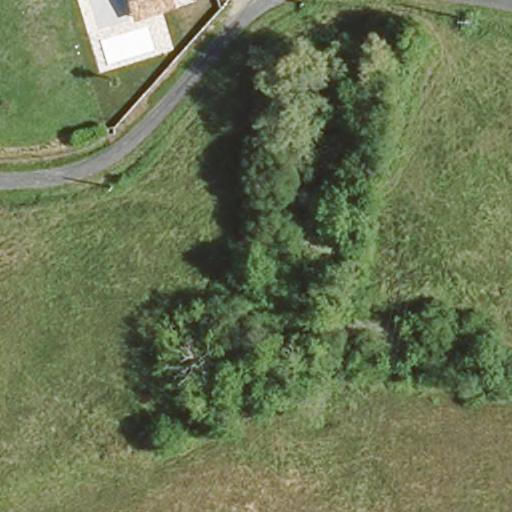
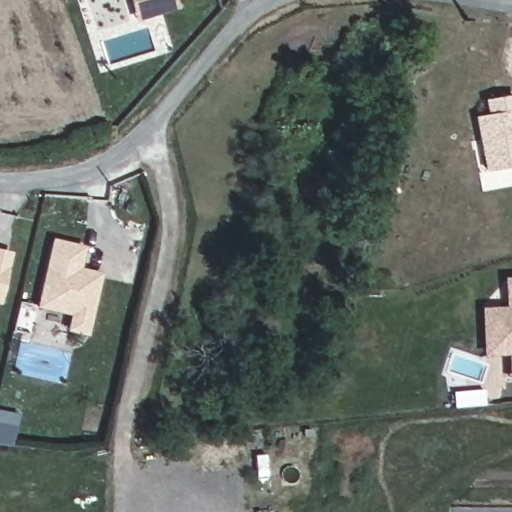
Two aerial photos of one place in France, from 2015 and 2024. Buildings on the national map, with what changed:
new [(488,113),(486,97),(511,93),(512,101),(512,162),(485,166),(475,115),(488,113)]
new [(68,330),(70,315),(38,307),(52,240),(80,245),(76,272),(97,276),(85,332),(68,330)]
new [(0,303),(0,250),(11,252),(0,303)]
new [(501,349),(485,350),(483,307),(507,306),(506,277),(512,277),(512,375),(502,375),(501,349)]
new [(453,505),(512,505),(512,512),(452,512),(453,505)]

